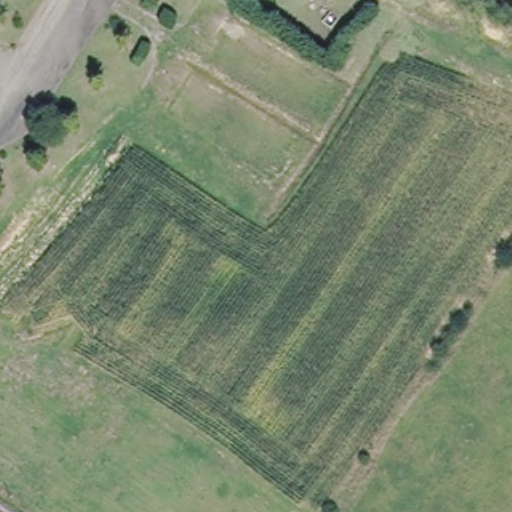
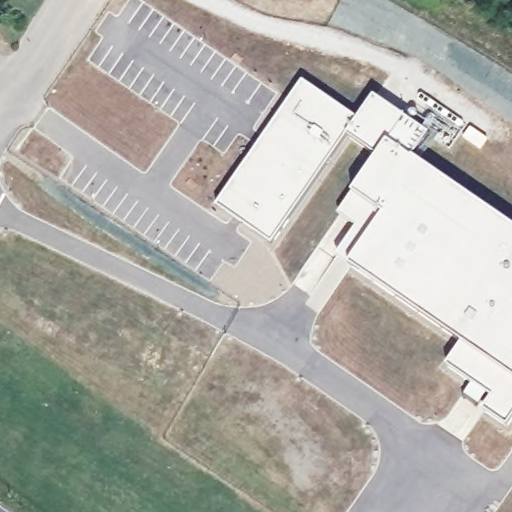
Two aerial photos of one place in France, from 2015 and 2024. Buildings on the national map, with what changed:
new [(374,94),(430,135),(413,157),(512,225),(512,422),(509,427),(482,410),(491,397),(446,365),(461,341),(351,265),(336,255),(357,227),(337,212),(351,191),(378,157),(347,135),(272,245),(215,205),(302,80),(358,118),(374,94)]

